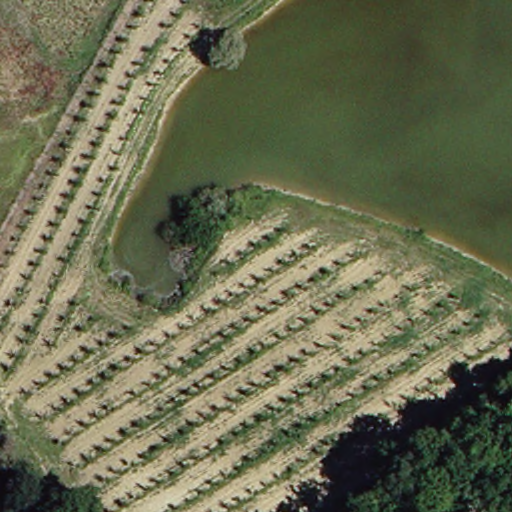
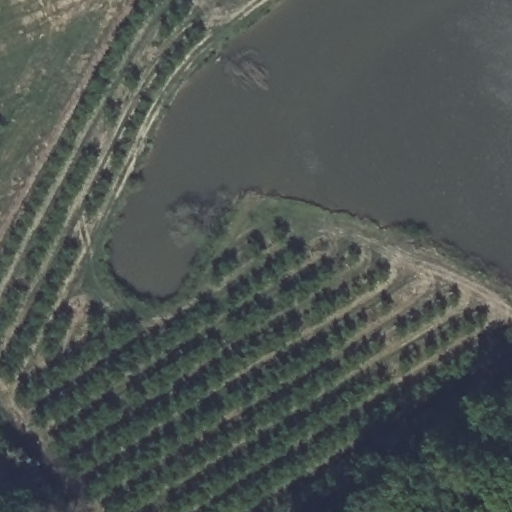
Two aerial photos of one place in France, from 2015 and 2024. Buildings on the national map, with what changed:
[]

